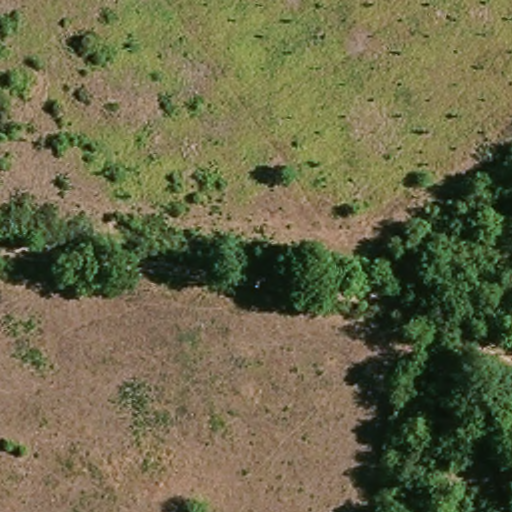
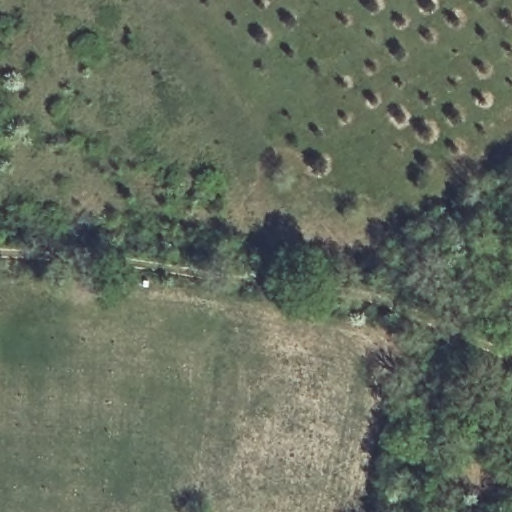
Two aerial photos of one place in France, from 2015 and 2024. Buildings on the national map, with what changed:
[]

